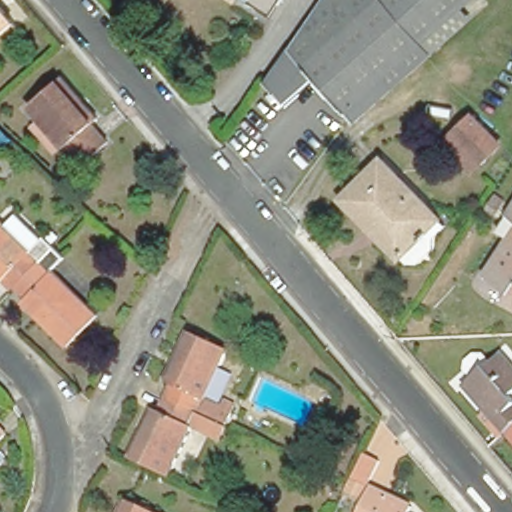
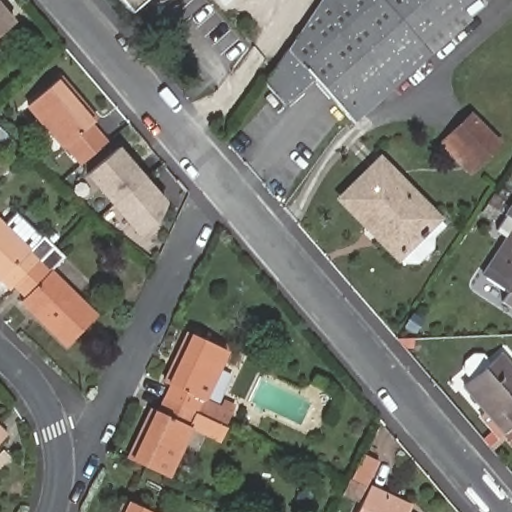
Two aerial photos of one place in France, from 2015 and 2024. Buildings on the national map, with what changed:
new [(121,0),(145,0),(131,11),(121,0)]
unchanged [(234,0),(236,0),(235,1),(234,0)]
unchanged [(243,0),(282,0),(270,19),(243,0)]
unchanged [(427,56),(352,123),(315,83),(292,104),(272,84),(330,0),(472,0),(420,46),(427,56)]
unchanged [(0,34),(0,5),(15,21),(0,34)]
unchanged [(62,76),(97,118),(92,123),(108,142),(83,163),(67,145),(64,146),(29,104),(62,76)]
unchanged [(442,145),(451,136),(471,117),(498,145),(478,165),(471,173),(442,145)]
new [(117,146),(143,176),(113,202),(87,172),(117,146)]
unchanged [(381,161),(438,220),(403,254),(377,226),(371,231),(341,199),(381,161)]
new [(111,204),(113,202),(143,176),(144,175),(167,201),(157,223),(138,238),(111,204)]
unchanged [(503,232),(512,218),(512,238),(503,232)]
unchanged [(1,280),(0,279),(0,221),(30,250),(45,237),(54,247),(16,286),(6,277),(1,280)]
unchanged [(506,303),(512,295),(487,278),(512,239),(512,307),(506,303)]
unchanged [(54,247),(66,258),(52,272),(96,316),(68,345),(24,303),(27,298),(16,286),(54,247)]
unchanged [(177,386),(168,382),(192,329),(233,348),(210,400),(237,413),(231,425),(227,423),(202,411),(171,397),(177,386)]
unchanged [(507,434),(467,387),(504,356),(512,365),(512,430),(507,434)]
unchanged [(157,409),(165,411),(171,397),(202,411),(227,423),(220,437),(197,427),(175,477),(134,458),(157,409)]
unchanged [(0,442),(0,426),(9,434),(0,442)]
unchanged [(507,434),(512,430),(512,439),(507,434)]
unchanged [(367,450),(382,457),(372,479),(356,473),(367,450)]
unchanged [(353,479),(355,476),(368,482),(364,491),(351,485),(353,479)]
unchanged [(375,483),(415,501),(412,511),(414,512),(362,512),(375,483)]
unchanged [(125,501),(151,512),(120,512),(125,501)]

